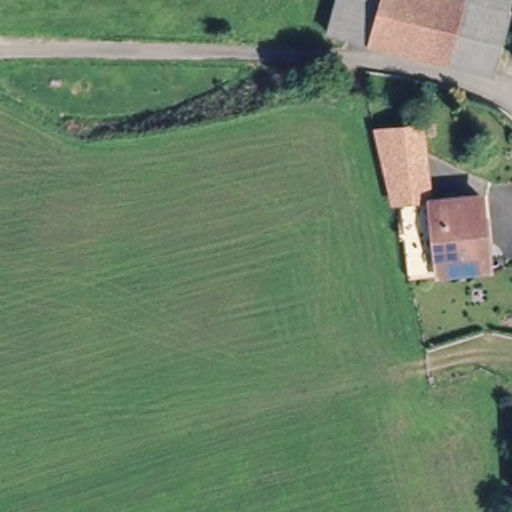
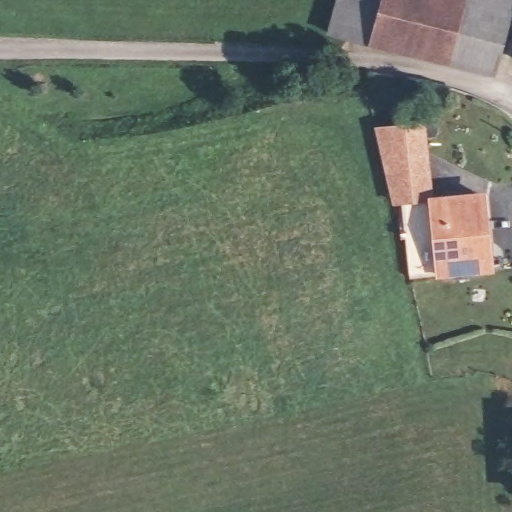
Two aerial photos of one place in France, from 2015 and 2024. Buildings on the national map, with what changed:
unchanged [(339,0),(413,0),(405,41),(421,44),(416,58),(331,37),(339,0)]
unchanged [(475,4),(512,13),(512,21),(498,78),(416,58),(421,44),(405,41),(413,0),(458,0),(475,4)]
unchanged [(512,13),(475,4),(476,0),(512,0),(512,13)]
unchanged [(425,120),(434,199),(410,199),(387,201),(375,126),(425,120)]
unchanged [(410,199),(434,199),(487,199),(488,276),(407,274),(410,199)]

